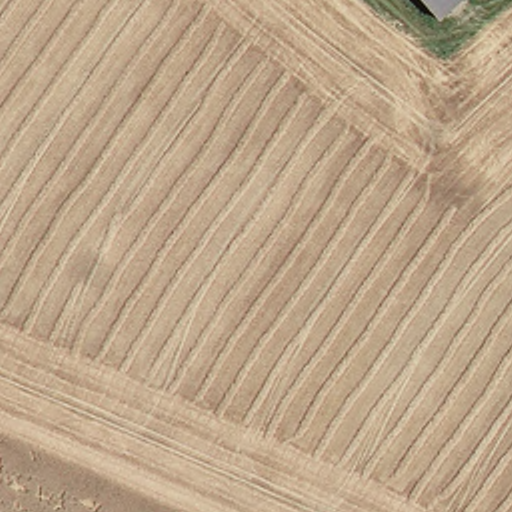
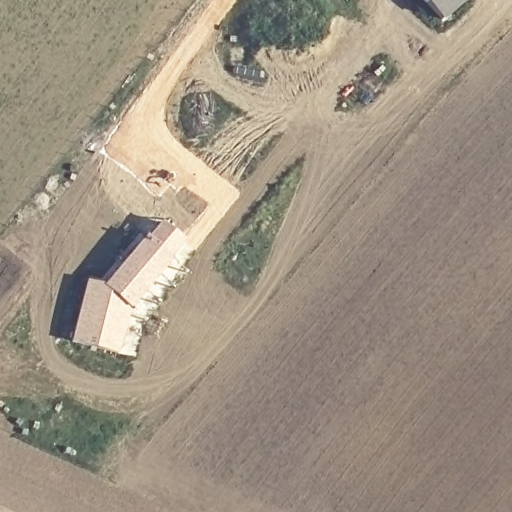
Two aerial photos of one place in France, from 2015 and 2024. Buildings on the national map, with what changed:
unchanged [(419,0),(464,0),(439,22),(419,0)]
new [(86,280),(104,285),(146,237),(147,239),(161,222),(183,241),(170,257),(173,259),(130,312),(118,355),(72,342),(86,280)]

